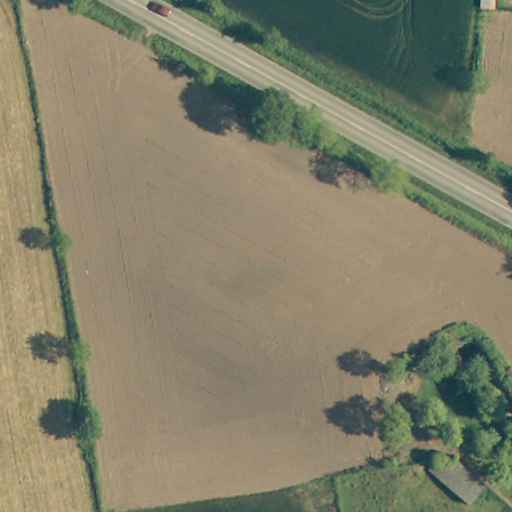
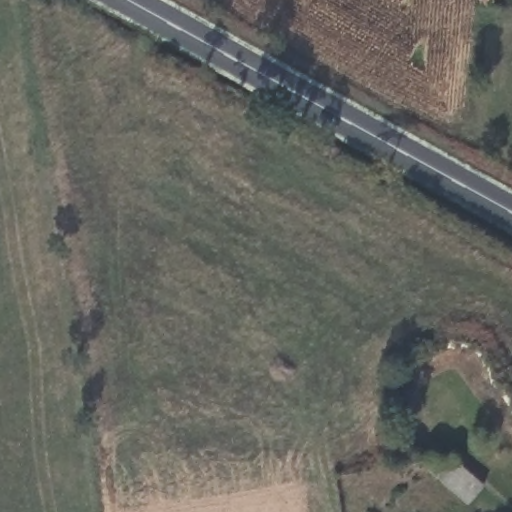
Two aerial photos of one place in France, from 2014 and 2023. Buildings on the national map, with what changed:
unchanged [(426,468),(433,460),(453,455),(486,482),(468,505),(426,468)]

